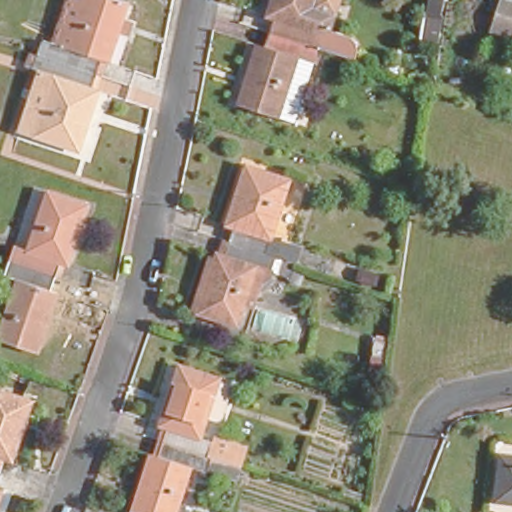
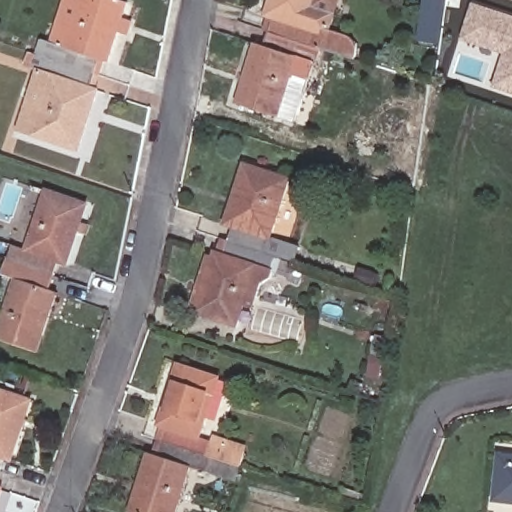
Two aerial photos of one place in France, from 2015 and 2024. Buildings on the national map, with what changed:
unchanged [(45,39),(53,42),(66,0),(121,0),(127,2),(110,59),(105,57),(100,74),(40,53),(45,39)]
unchanged [(281,109),(244,99),(255,38),(270,41),(275,23),(278,7),(266,5),(267,0),(315,0),(330,5),(325,25),(360,34),(354,55),(318,47),(298,114),(281,109)]
demolished [(502,1),(512,4),(512,20),(498,17),(502,1)]
new [(506,55),(462,41),(475,4),(512,16),(512,94),(494,89),(506,55)]
unchanged [(419,44),(422,15),(442,18),(438,47),(419,44)]
unchanged [(82,147),(24,129),(44,68),(35,65),(40,53),(100,74),(96,86),(101,88),(89,127),(82,147)]
unchanged [(235,235),(239,219),(228,216),(242,157),(290,171),(270,246),(235,235)]
unchanged [(52,253),(47,272),(2,256),(8,237),(22,241),(41,186),(84,200),(63,257),(52,253)]
unchanged [(195,309),(211,252),(229,257),(235,235),(270,246),(263,266),(255,264),(238,322),(195,309)]
unchanged [(42,287),(57,293),(36,354),(0,341),(0,308),(11,276),(0,272),(0,261),(2,256),(47,272),(42,287)]
unchanged [(160,459),(167,438),(174,419),(164,415),(181,359),(225,372),(207,432),(218,436),(247,445),(238,474),(209,465),(205,474),(195,470),(181,512),(144,512),(134,509),(150,455),(160,459)]
unchanged [(25,395),(9,446),(0,443),(0,386),(25,395)]
unchanged [(495,449),(512,450),(512,501),(491,499),(495,449)]

